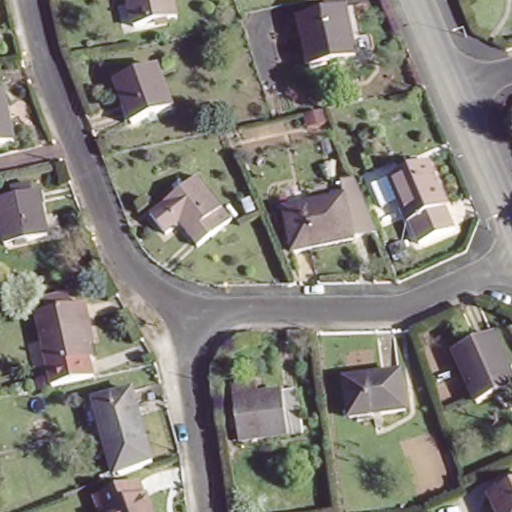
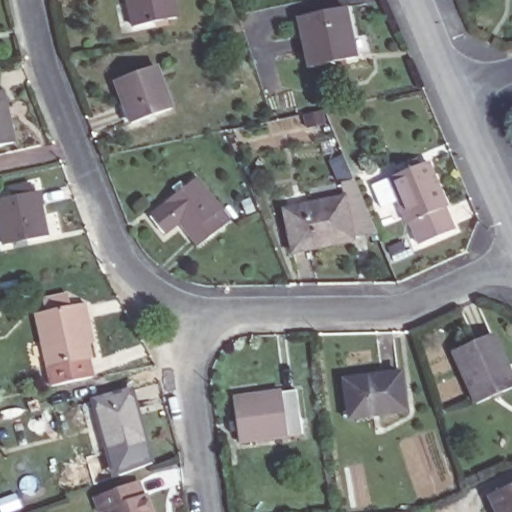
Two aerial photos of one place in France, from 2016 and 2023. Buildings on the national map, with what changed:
unchanged [(134,26),(129,0),(173,0),(177,16),(134,26)]
unchanged [(300,18),(346,7),(358,56),(310,67),(300,18)]
unchanged [(155,65),(174,105),(140,122),(121,82),(155,65)]
unchanged [(22,141),(0,145),(0,94),(10,92),(22,141)]
unchanged [(454,232),(423,246),(413,224),(409,226),(392,186),(415,177),(411,170),(420,164),(424,172),(431,169),(447,206),(444,209),(454,232)]
unchanged [(192,249),(174,226),(161,232),(147,212),(176,192),(171,184),(181,177),(190,185),(199,180),(227,226),(192,249)]
unchanged [(8,247),(1,216),(14,212),(11,197),(19,195),(17,184),(37,180),(40,190),(51,236),(8,247)]
unchanged [(271,225),(327,207),(321,189),(342,180),(366,236),(282,260),(271,225)]
unchanged [(35,318),(47,316),(43,302),(67,297),(70,310),(84,307),(87,323),(92,346),(85,347),(89,362),(46,371),(35,318)]
unchanged [(495,334),(512,368),(512,388),(484,401),(460,350),(495,334)]
unchanged [(349,381),(403,375),(409,411),(352,417),(349,381)]
unchanged [(106,452),(94,400),(132,388),(146,441),(106,452)]
unchanged [(302,418),(287,422),(290,435),(241,443),(232,403),(296,392),(302,418)]
unchanged [(112,479),(106,452),(146,441),(155,464),(112,479)]
unchanged [(155,512),(112,512),(111,511),(107,512),(103,512),(100,503),(114,497),(143,483),(155,512)]
unchanged [(486,499),(512,486),(512,512),(491,512),(486,499)]

